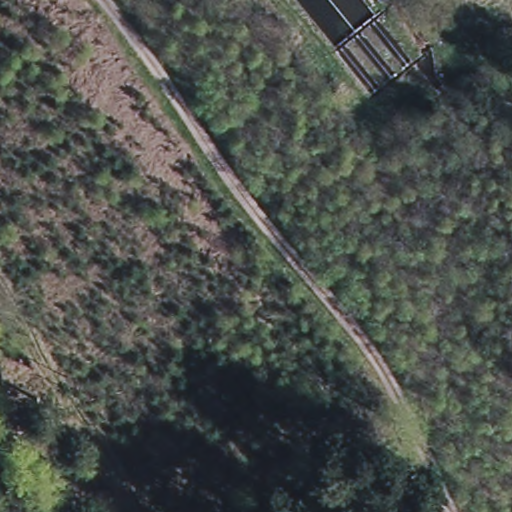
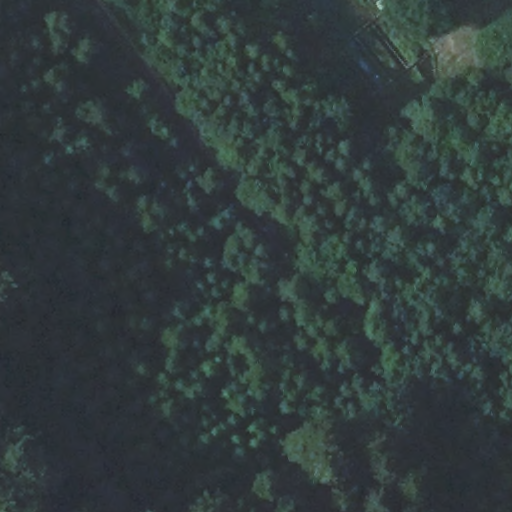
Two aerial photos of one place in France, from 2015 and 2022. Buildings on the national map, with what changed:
[]

